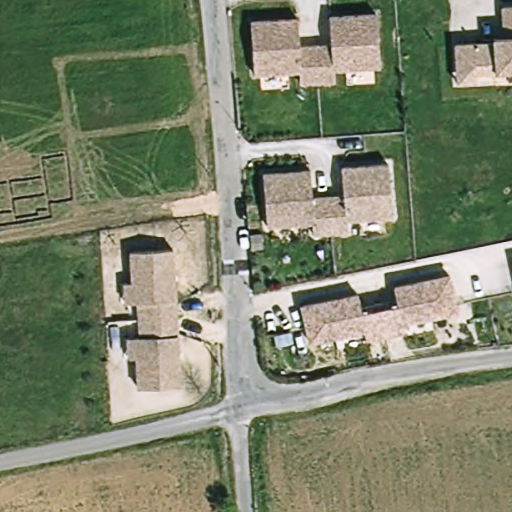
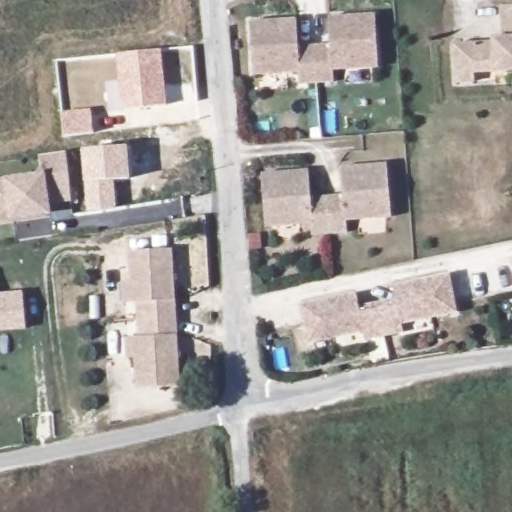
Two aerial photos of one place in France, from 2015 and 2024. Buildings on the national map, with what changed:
unchanged [(459,67),(458,43),(495,41),(495,37),(507,37),(506,5),(512,5),(512,72),(477,73),(476,82),(460,83),(459,67)]
unchanged [(300,45),(316,45),(332,45),(332,15),(376,15),(378,69),(333,70),(333,81),(300,82),(300,72),(255,73),(253,20),(299,17),(300,45)]
new [(168,103),(123,108),(117,54),(162,49),(168,103)]
new [(115,181),(116,209),(90,211),(82,149),(129,146),(131,178),(115,181)]
new [(3,179),(42,173),(39,155),(67,152),(70,202),(50,205),(51,215),(10,222),(9,215),(0,216),(0,179),(3,179)]
unchanged [(345,195),(343,166),(389,162),(394,216),(348,221),(349,234),(332,235),(330,196),(345,195)]
unchanged [(316,236),(315,224),(269,227),(265,174),(311,170),(313,197),(330,196),(332,235),(316,236)]
unchanged [(182,385),(142,385),(141,358),(132,358),(131,335),(147,334),(147,317),(138,317),(138,299),(130,300),(130,281),(136,281),(136,247),(178,247),(182,385)]
unchanged [(457,308),(403,321),(405,329),(367,337),(365,329),(311,341),(304,304),(359,292),(361,305),(397,297),(394,285),(450,272),(457,308)]
new [(23,292),(25,328),(0,330),(0,294),(23,292)]

